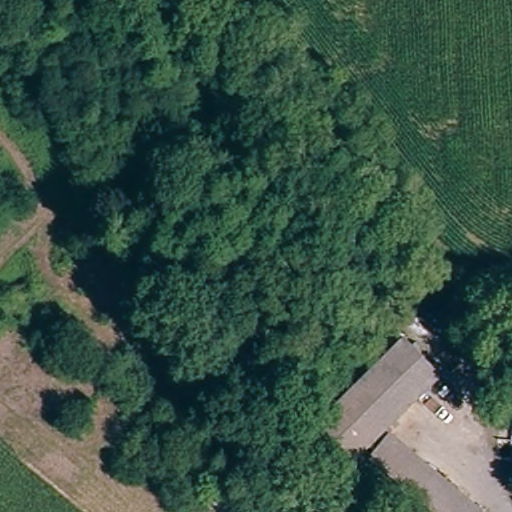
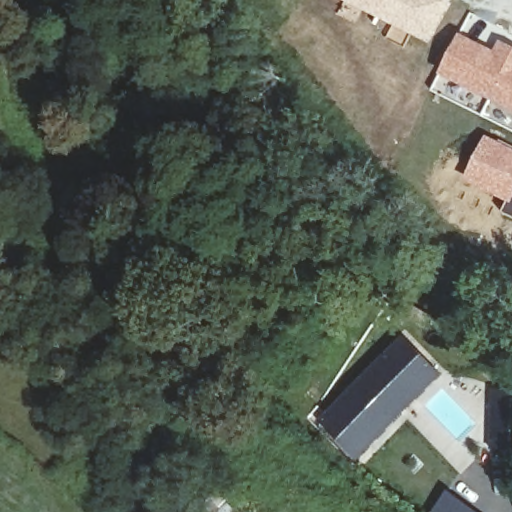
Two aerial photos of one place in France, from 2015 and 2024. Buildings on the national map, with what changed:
new [(430,44),(406,33),(401,43),(389,37),(394,26),(344,0),(451,0),(430,44)]
new [(459,35),(494,51),(499,41),(512,47),(512,129),(506,127),(511,117),(438,79),(459,35)]
new [(486,135),(512,147),(512,218),(503,214),(508,203),(464,182),(486,135)]
unchanged [(439,370),(357,455),(319,421),(385,356),(376,347),(387,337),(396,345),(404,337),(439,370)]
new [(473,512),(434,512),(448,493),(473,512)]

